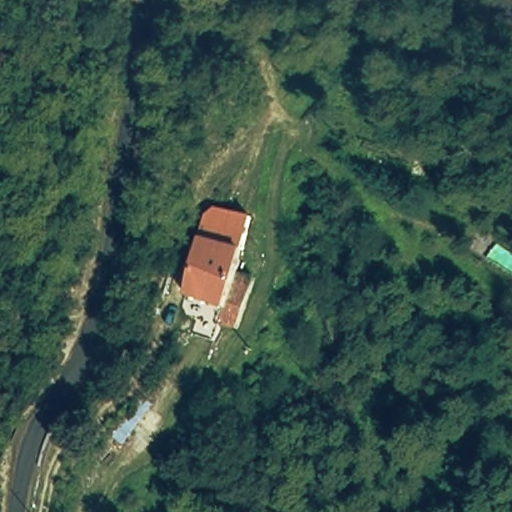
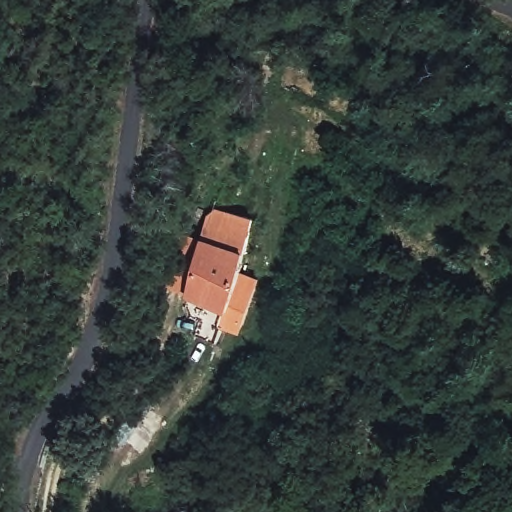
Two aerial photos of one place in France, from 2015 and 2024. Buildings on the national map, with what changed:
unchanged [(224,330),(229,313),(189,302),(205,240),(214,207),(258,220),(248,251),(239,286),(257,290),(245,336),(224,330)]

